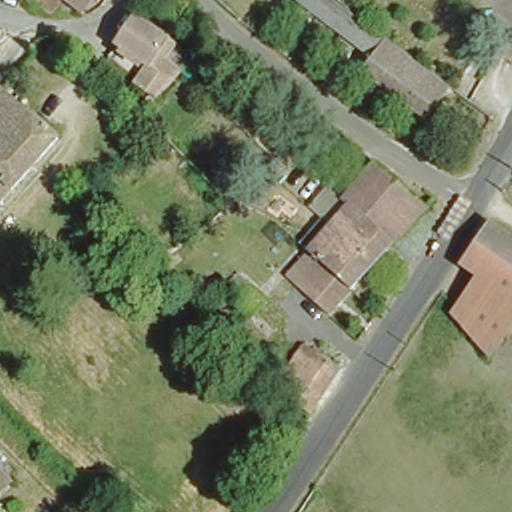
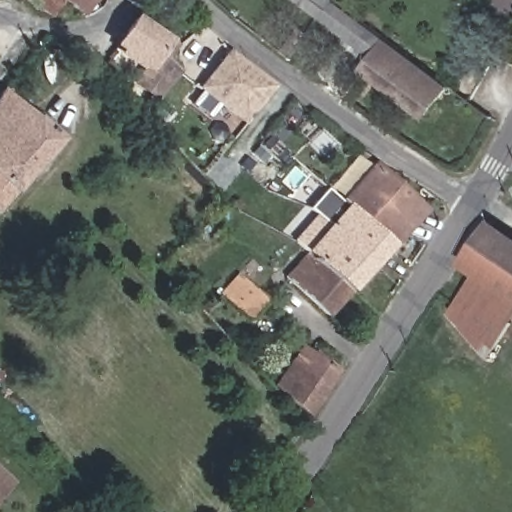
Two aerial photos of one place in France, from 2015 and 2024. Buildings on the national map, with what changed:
unchanged [(65,7),(58,5),(54,7),(42,0),(71,0),(69,6),(65,7)]
unchanged [(82,0),(80,4),(74,0),(82,0)]
new [(317,8),(357,39),(372,51),(368,57),(293,0),(314,0),(312,3),(317,8)]
unchanged [(312,3),(314,0),(340,0),(369,23),(357,39),(317,8),(312,3)]
unchanged [(153,107),(132,87),(145,67),(116,48),(117,47),(116,47),(135,20),(148,29),(161,37),(163,39),(154,52),(157,54),(159,56),(164,60),(166,62),(167,62),(168,65),(169,65),(177,74),(174,78),(173,79),(172,81),(166,89),(164,92),(153,107)]
unchanged [(369,23),(401,47),(416,60),(421,64),(422,65),(426,67),(435,75),(437,77),(445,82),(422,112),(362,65),(368,57),(372,51),(357,39),(369,23)]
new [(244,126),(197,87),(229,49),(276,86),(244,126)]
unchanged [(2,95),(11,84),(72,127),(47,157),(42,162),(5,203),(0,200),(0,97),(2,95)]
unchanged [(308,254),(298,246),(307,236),(316,244),(337,220),(316,200),(332,180),(348,192),(381,155),(430,197),(352,289),(308,254)]
unchanged [(252,197),(243,205),(238,200),(249,192),(252,197)]
unchanged [(487,222),(512,238),(512,300),(478,277),(460,265),(487,222)]
unchanged [(331,314),(327,311),(288,277),(308,254),(352,289),(331,314)]
unchanged [(457,310),(478,277),(512,300),(512,322),(492,357),(457,310)]
unchanged [(252,318),(251,320),(223,297),(222,296),(240,278),(267,301),(252,318)]
unchanged [(330,387),(314,411),(287,388),(281,379),(303,347),(311,353),(315,347),(345,367),(330,387)]
unchanged [(15,476),(0,492),(0,463),(15,476)]

